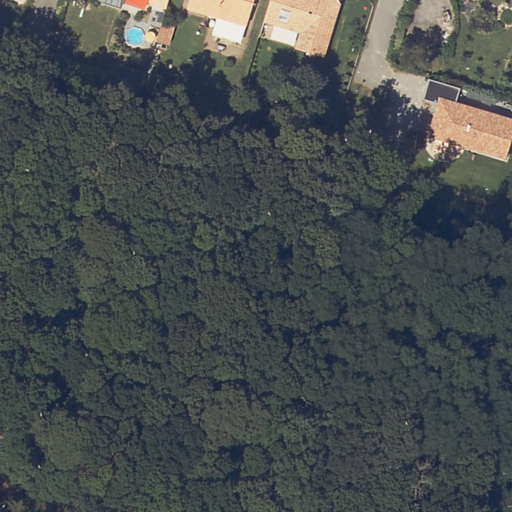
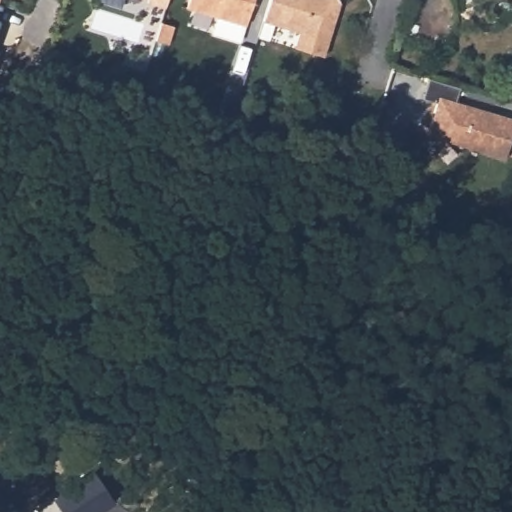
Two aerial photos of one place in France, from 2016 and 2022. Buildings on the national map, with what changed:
unchanged [(5,5),(0,3),(0,0),(7,0),(5,5)]
unchanged [(150,5),(133,0),(152,0),(150,5)]
unchanged [(171,2),(162,0),(172,0),(171,2)]
unchanged [(210,32),(215,15),(185,6),(186,0),(250,0),(243,24),(241,23),(236,40),(210,32)]
unchanged [(299,32),(263,21),(269,0),(338,0),(340,2),(337,9),(323,56),(299,49),(294,47),(299,32)]
new [(5,5),(0,17),(0,3),(5,5)]
unchanged [(168,44),(156,41),(159,32),(161,22),(174,26),(168,44)]
unchanged [(512,135),(505,159),(425,136),(437,101),(425,98),(431,79),(460,87),(455,99),(512,117),(512,135)]
new [(94,469),(114,498),(94,512),(35,512),(34,510),(94,469)]

